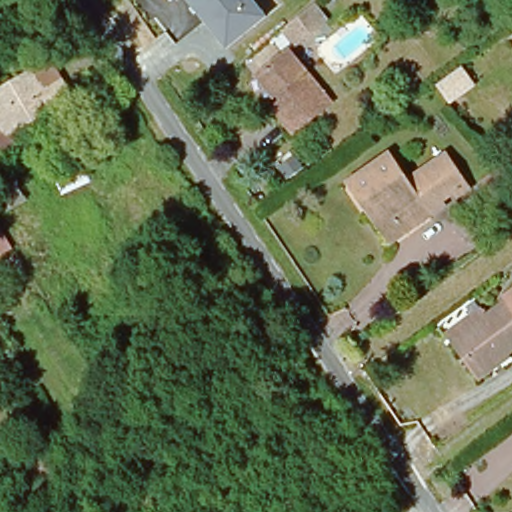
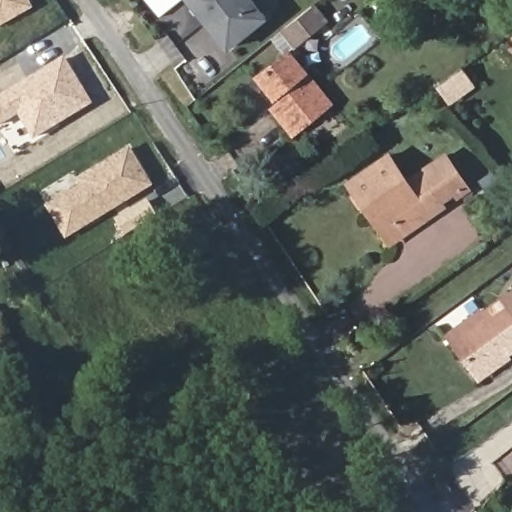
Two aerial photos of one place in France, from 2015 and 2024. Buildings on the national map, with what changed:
new [(0,28),(0,0),(29,0),(34,9),(0,28)]
unchanged [(228,49),(188,0),(256,0),(268,17),(228,49)]
unchanged [(288,26),(313,6),(326,22),(298,44),(286,27),(288,26)]
unchanged [(290,49),(332,103),(294,134),(287,125),(292,120),(257,75),(290,49)]
new [(93,104),(34,140),(18,115),(0,125),(0,95),(64,57),(93,104)]
unchanged [(457,69),(469,85),(448,99),(437,83),(457,69)]
demolished [(65,113),(63,115),(0,151),(0,101),(44,76),(65,113)]
new [(154,186),(65,240),(44,207),(84,182),(79,175),(129,147),(154,186)]
unchanged [(371,216),(352,187),(390,161),(402,178),(412,169),(423,181),(448,166),(467,189),(441,206),(443,211),(430,221),(391,246),(371,216)]
demolished [(27,197),(9,207),(0,192),(0,166),(7,164),(27,197)]
unchanged [(508,179),(492,191),(483,180),(499,167),(508,179)]
new [(147,199),(157,215),(127,234),(117,218),(147,199)]
demolished [(0,214),(9,228),(16,240),(0,250),(0,214)]
unchanged [(0,305),(0,296),(4,302),(0,305)]
unchanged [(502,305),(512,296),(512,354),(478,377),(454,346),(447,337),(480,313),(487,322),(505,310),(502,305)]

